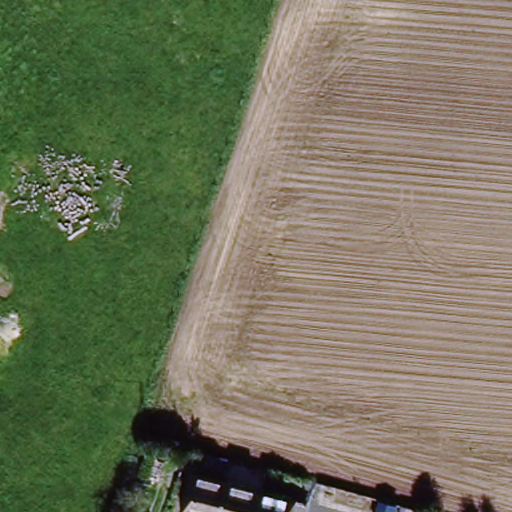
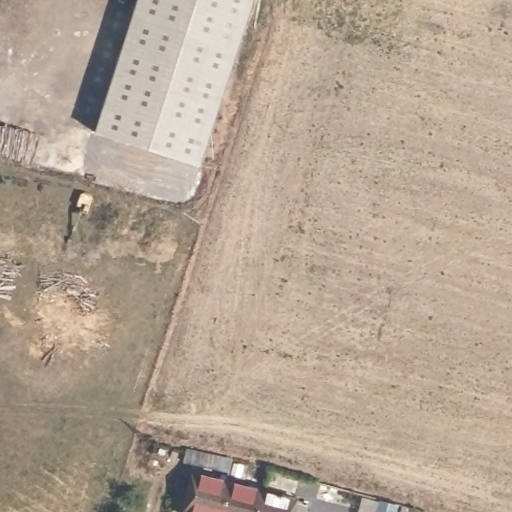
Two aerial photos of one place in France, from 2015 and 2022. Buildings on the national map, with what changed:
new [(198,167),(93,133),(135,0),(253,0),(198,167)]
unchanged [(196,512),(207,479),(248,490),(242,512),(196,512)]
unchanged [(242,512),(248,490),(277,499),(274,512),(242,512)]
unchanged [(311,509),(310,512),(274,512),(277,499),(311,509)]

